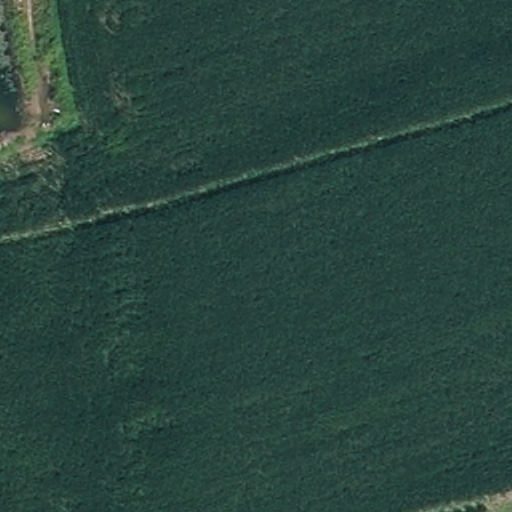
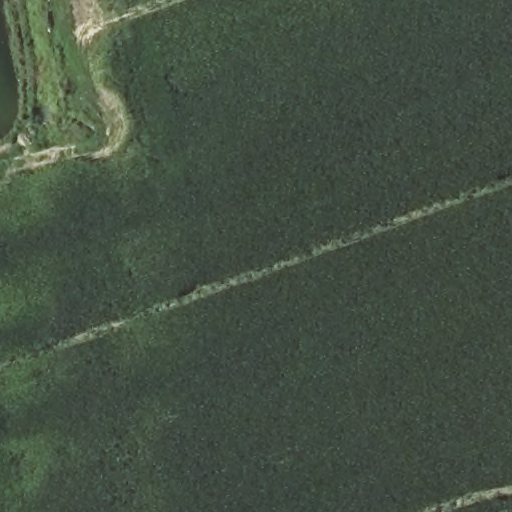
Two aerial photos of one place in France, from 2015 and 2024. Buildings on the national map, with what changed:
[]

